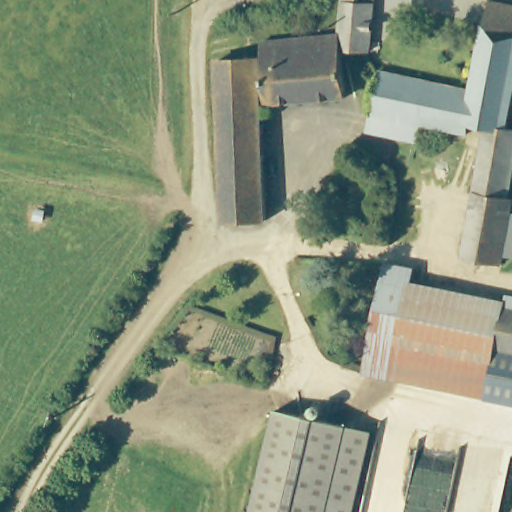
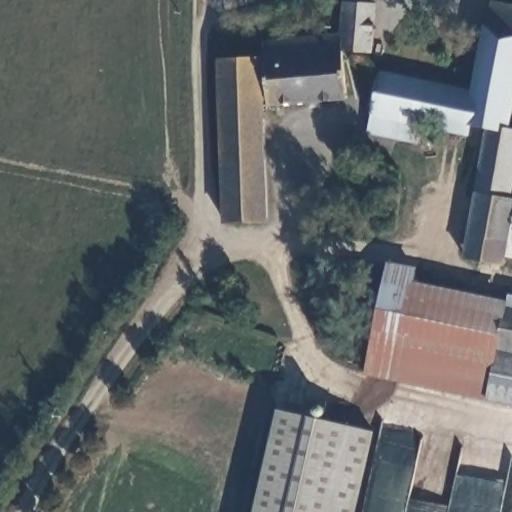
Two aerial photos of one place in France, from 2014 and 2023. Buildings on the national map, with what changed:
unchanged [(340,35),(343,0),(374,0),(369,51),(341,50),(340,35)]
unchanged [(478,260),(463,257),(487,127),(468,124),(471,91),(489,0),(512,5),(512,113),(510,127),(512,128),(512,177),(508,199),(512,199),(512,210),(512,212),(512,213),(512,253),(505,252),(503,264),(501,275),(475,270),(478,260)]
unchanged [(346,97),(267,104),(265,71),(262,72),(267,220),(224,222),(219,60),(264,59),(263,42),(340,35),(341,50),(346,97)]
unchanged [(367,130),(371,114),(380,71),(471,91),(468,124),(467,135),(420,125),(416,140),(367,130)]
unchanged [(391,379),(364,373),(387,263),(414,268),(410,288),(391,379)]
unchanged [(512,380),(492,376),(487,398),(391,379),(410,288),(512,309),(512,380)]
unchanged [(359,512),(258,512),(281,412),(378,434),(359,512)]

